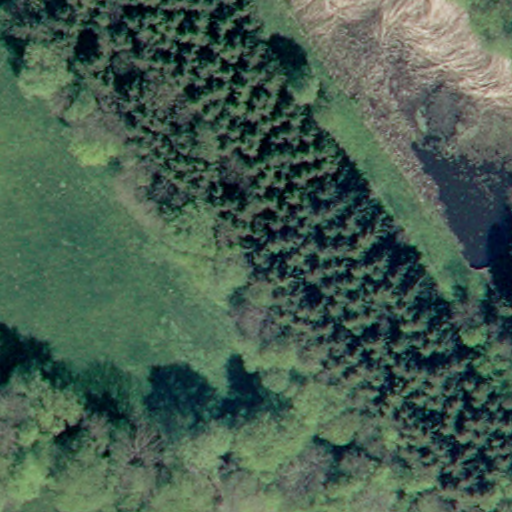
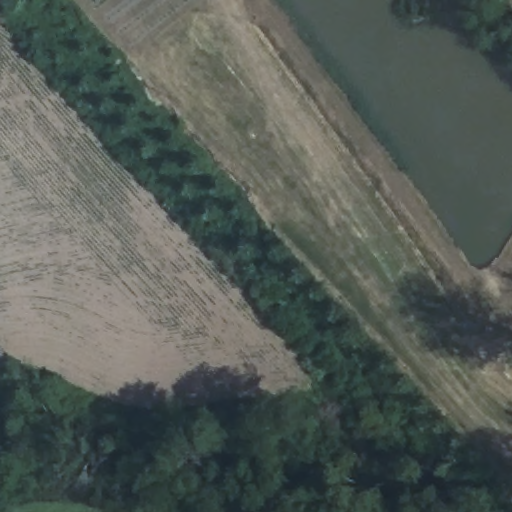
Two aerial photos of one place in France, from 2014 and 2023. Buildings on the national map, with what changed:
[]

